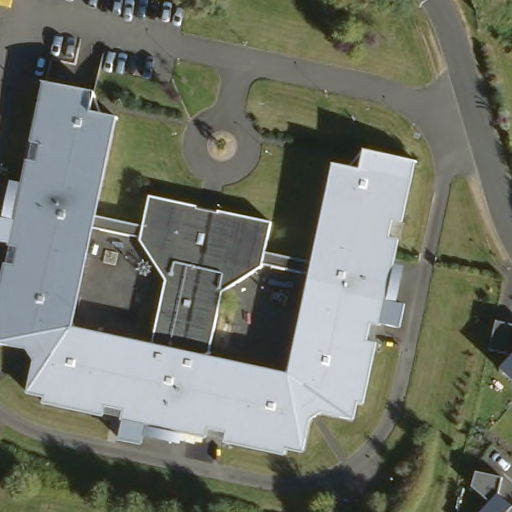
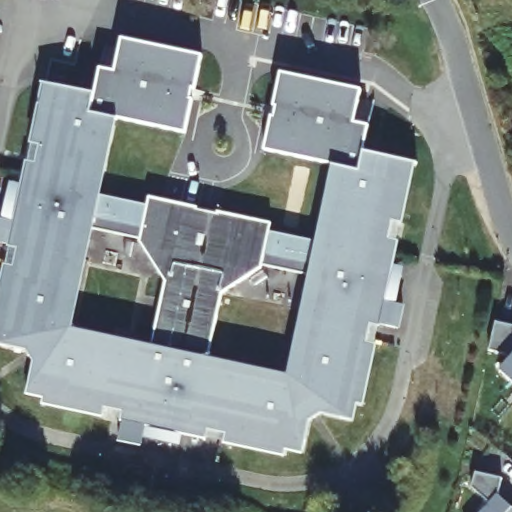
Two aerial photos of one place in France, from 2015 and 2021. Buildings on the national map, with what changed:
new [(115,115),(101,112),(94,90),(99,67),(115,72),(122,39),(202,59),(185,130),(115,117),(115,115)]
new [(265,152),(280,72),(362,91),(355,124),(369,127),(365,148),(363,147),(347,165),(333,162),(333,164),(265,152)]
unchanged [(182,428),(179,441),(143,432),(142,440),(119,435),(122,415),(120,415),(103,411),(42,398),(44,392),(26,388),(32,357),(26,346),(0,341),(0,283),(5,260),(9,242),(10,240),(0,238),(0,215),(1,216),(10,177),(22,180),(24,174),(27,157),(31,140),(44,79),(94,90),(101,112),(115,115),(94,213),(142,223),(149,194),(197,204),(197,205),(217,209),(217,208),(270,220),(265,250),(312,260),(333,162),(347,165),(363,147),(412,158),(400,219),(396,237),(392,254),(390,261),(403,263),(396,300),(402,301),(398,323),(378,318),(377,322),(374,340),(360,401),(355,399),(351,416),(320,410),(309,417),(302,447),(285,443),(284,450),(223,437),(205,433),(189,429),(182,428)]
new [(142,223),(94,213),(98,195),(147,204),(142,223)]
new [(317,241),(312,260),(265,250),(268,231),(317,241)]
unchanged [(490,315),(512,320),(512,383),(492,365),(504,352),(500,348),(483,343),(490,315)]
unchanged [(485,506),(467,490),(471,475),(498,481),(495,496),(495,497),(510,512),(480,512),(485,506)]

